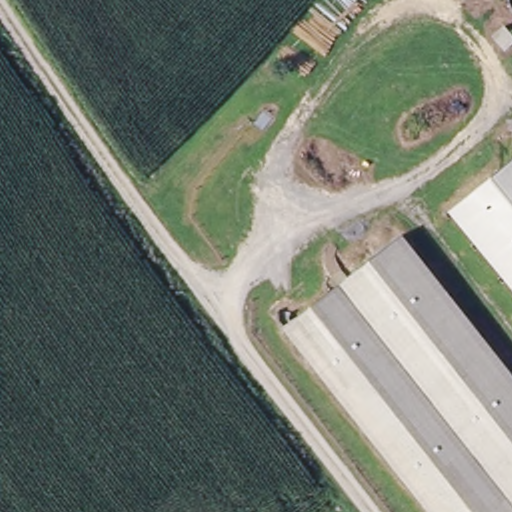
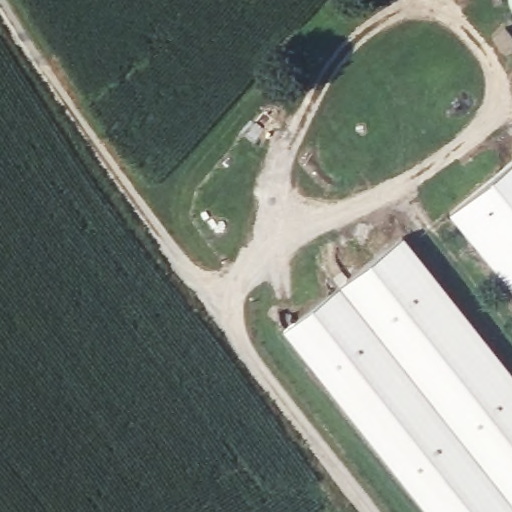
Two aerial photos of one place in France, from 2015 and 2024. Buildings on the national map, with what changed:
unchanged [(512,166),(512,288),(452,215),(512,166)]
unchanged [(402,240),(512,380),(512,512),(431,512),(288,329),(402,240)]

